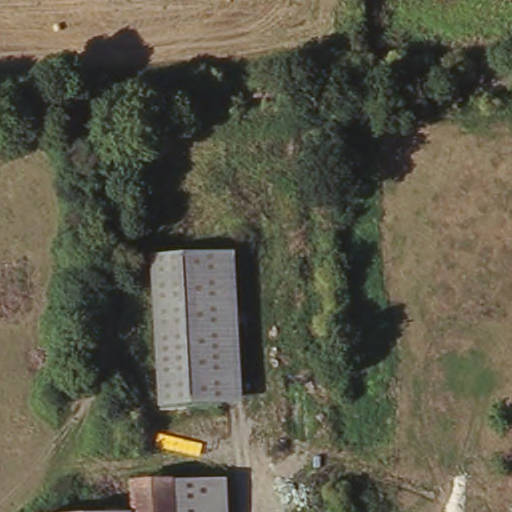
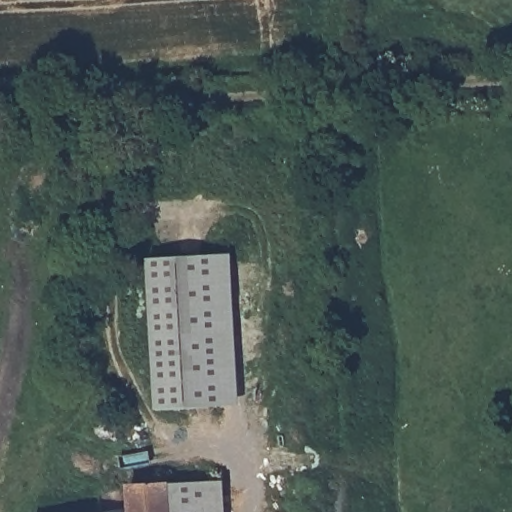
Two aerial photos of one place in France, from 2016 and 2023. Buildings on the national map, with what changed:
unchanged [(150,259),(234,254),(242,404),(158,409),(150,259)]
unchanged [(133,485),(174,484),(228,482),(230,512),(134,512),(133,485)]

